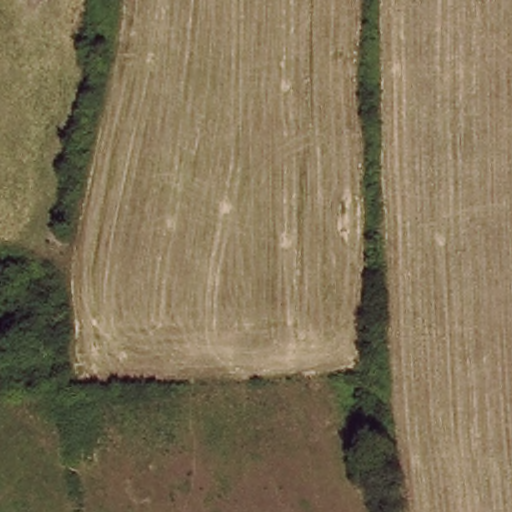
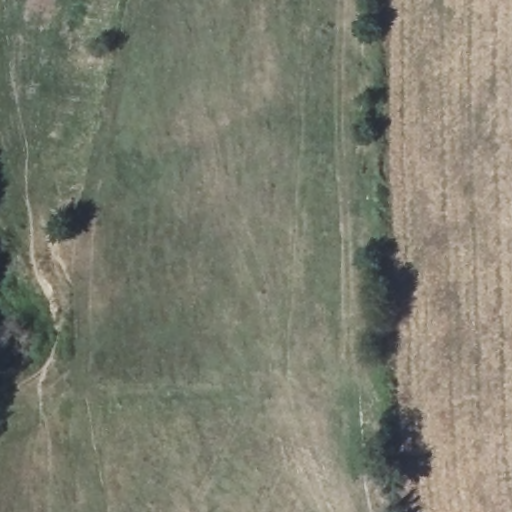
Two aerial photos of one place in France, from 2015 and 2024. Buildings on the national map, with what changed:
[]

